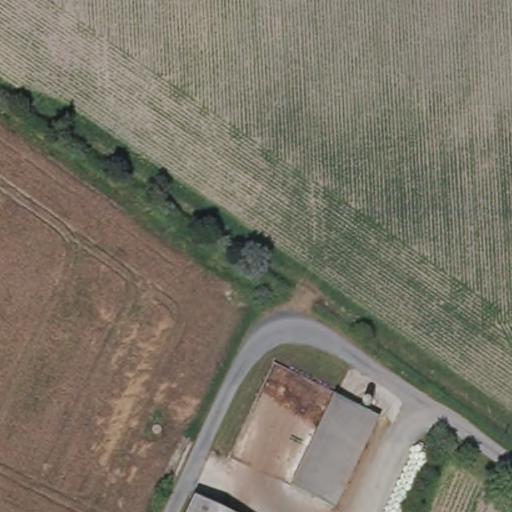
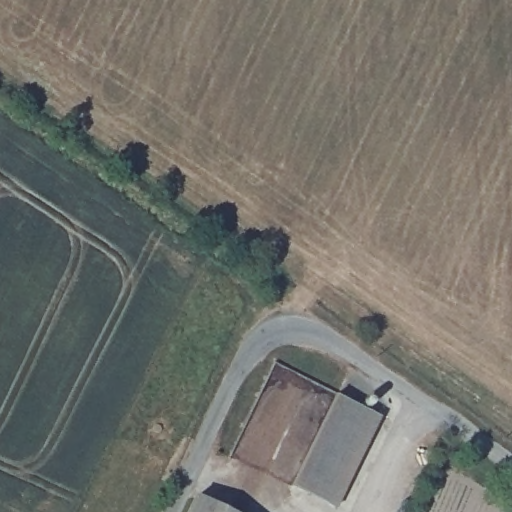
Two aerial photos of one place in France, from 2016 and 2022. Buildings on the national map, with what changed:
unchanged [(379,415),(334,506),(292,486),(337,394),(379,415)]
unchanged [(199,508),(207,512),(197,512),(199,508)]

